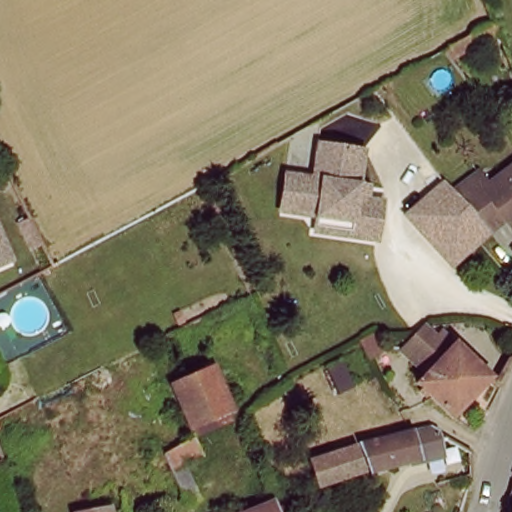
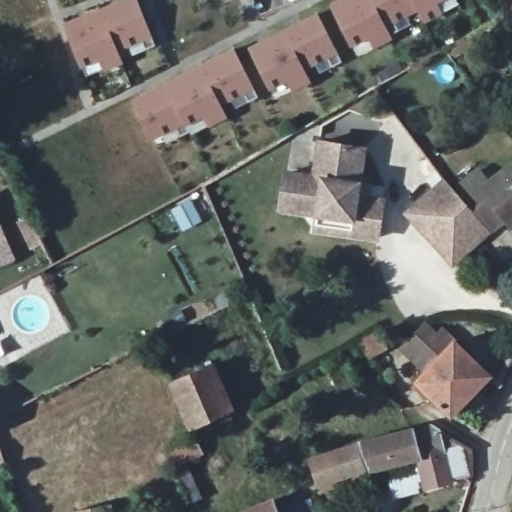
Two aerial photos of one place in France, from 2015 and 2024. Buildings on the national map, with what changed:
new [(130,0),(136,0),(152,42),(118,54),(124,68),(103,76),(98,65),(79,73),(64,27),(130,0)]
new [(342,0),(450,0),(437,7),(442,18),(424,27),(418,15),(387,30),(393,42),(374,52),(369,42),(350,51),(329,7),(342,0)]
new [(316,16),(338,58),(306,74),(312,86),(292,95),(287,86),(269,96),(246,50),(316,16)]
new [(234,51),(255,92),(222,108),(228,122),(207,132),(203,123),(151,146),(131,103),(234,51)]
unchanged [(322,221),(286,216),(289,200),(293,179),(320,184),(325,149),(370,156),(364,190),(374,192),(372,205),(388,207),(382,245),(355,241),(320,235),(322,221)]
unchanged [(454,186),(461,194),(484,176),(499,193),(512,181),(512,226),(510,224),(492,238),(451,188),(454,186)]
unchanged [(492,238),(482,246),(445,277),(418,253),(445,233),(428,206),(432,203),(437,198),(451,188),(492,238)]
unchanged [(29,246),(18,222),(30,217),(40,241),(29,246)]
unchanged [(0,268),(0,224),(16,261),(0,268)]
unchanged [(364,328),(368,326),(381,321),(385,326),(388,335),(370,342),(364,328)]
unchanged [(430,329),(435,334),(441,341),(447,336),(459,348),(460,347),(493,384),(454,421),(420,386),(431,376),(407,351),(409,348),(430,329)]
unchanged [(190,427),(183,411),(172,389),(218,367),(236,414),(193,435),(190,427)]
demolished [(134,444),(69,474),(38,402),(102,374),(134,444)]
unchanged [(444,450),(375,477),(364,451),(409,433),(427,427),(437,432),(444,450)]
unchanged [(160,459),(163,457),(196,437),(202,452),(166,473),(160,459)]
unchanged [(315,473),(357,453),(365,471),(368,479),(325,498),(315,473)]
unchanged [(281,512),(267,512),(279,508),(281,512)]
unchanged [(114,512),(107,512),(114,511),(114,512)]

